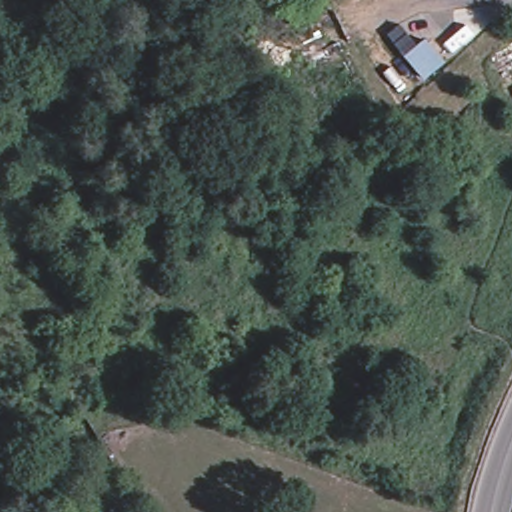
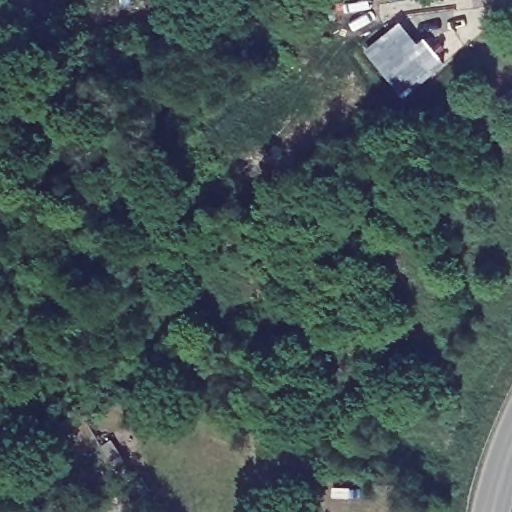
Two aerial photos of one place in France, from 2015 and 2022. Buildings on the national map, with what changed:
new [(420,41),(425,37),(446,64),(404,97),(364,50),(401,20),(420,41)]

